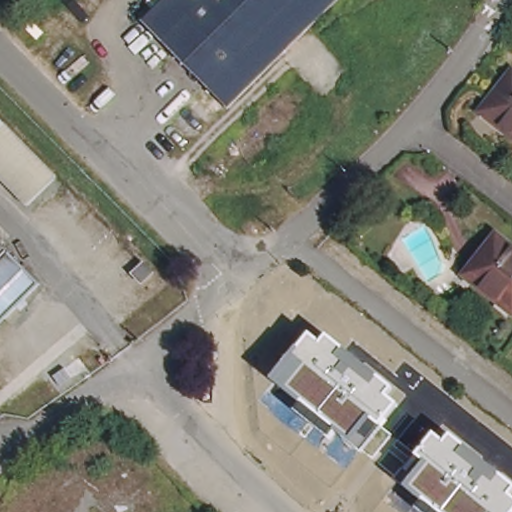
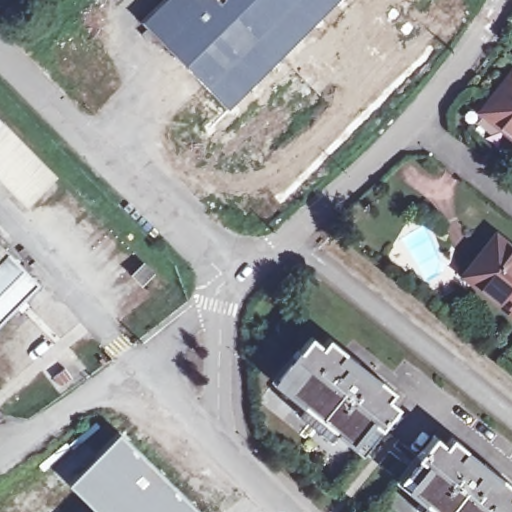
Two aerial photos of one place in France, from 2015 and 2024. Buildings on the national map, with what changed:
unchanged [(306,33),(231,108),(194,72),(180,57),(144,21),(164,0),(339,0),(306,33)]
unchanged [(487,101),(512,69),(512,134),(507,130),(480,110),(487,101)]
unchanged [(0,137),(0,127),(5,132),(0,137)]
unchanged [(23,207),(0,183),(0,137),(5,132),(52,179),(23,207)]
unchanged [(476,264),(494,240),(512,255),(512,311),(499,300),(468,275),(476,264)]
unchanged [(0,324),(0,242),(41,283),(0,324)]
unchanged [(394,390),(387,399),(398,407),(362,454),(334,432),(328,438),(295,411),(300,405),(271,381),(309,335),(321,345),(329,337),(394,390)]
new [(66,482),(119,428),(203,512),(93,512),(95,510),(66,482)]
unchanged [(509,496),(512,499),(512,512),(420,512),(417,510),(422,502),(404,488),(412,477),(407,473),(435,436),(446,443),(452,436),(512,485),(512,493),(509,496)]

